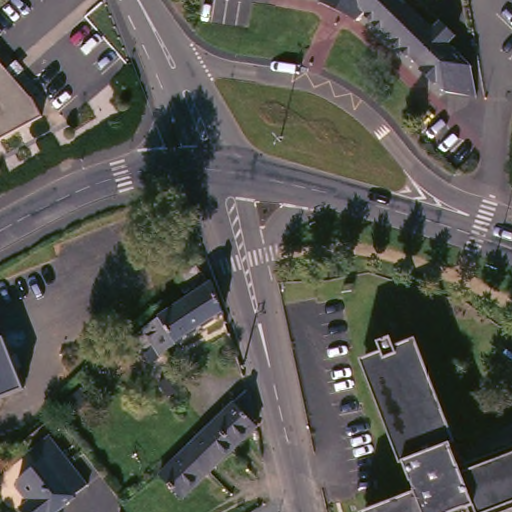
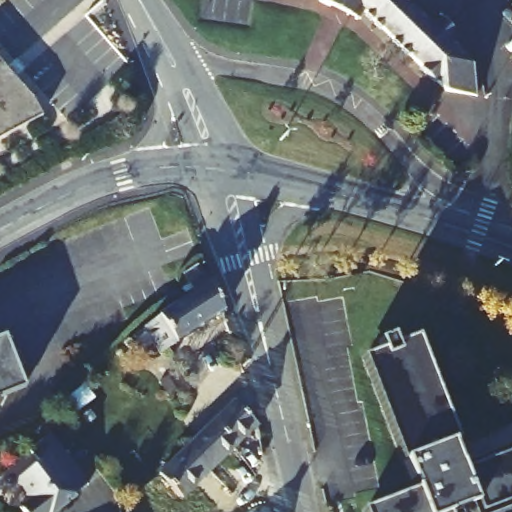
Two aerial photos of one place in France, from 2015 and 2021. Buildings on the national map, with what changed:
unchanged [(445,23),(463,41),(456,49),(476,69),(483,103),(450,96),(371,16),(363,26),(324,5),(325,0),(405,0),(436,31),(445,23)]
unchanged [(11,65),(19,74),(13,80),(30,99),(41,119),(0,141),(0,65),(5,71),(11,65)]
unchanged [(204,291),(196,280),(208,269),(218,279),(204,291)]
unchanged [(162,356),(156,346),(149,350),(140,335),(202,297),(225,283),(233,310),(162,356)]
unchanged [(365,358),(382,351),(377,338),(391,333),(396,346),(413,339),(462,467),(512,447),(512,507),(500,512),(474,512),(471,504),(463,509),(464,512),(453,512),(366,512),(365,511),(415,492),(365,358)]
unchanged [(0,406),(0,345),(11,341),(32,394),(0,406)]
unchanged [(267,429),(263,433),(184,499),(163,471),(256,390),(262,408),(253,414),(267,429)]
unchanged [(42,463),(33,451),(56,436),(90,487),(75,498),(76,500),(64,508),(35,467),(42,463)]
unchanged [(60,507),(53,512),(24,512),(20,506),(29,499),(18,484),(20,478),(35,467),(64,508),(60,507)]

